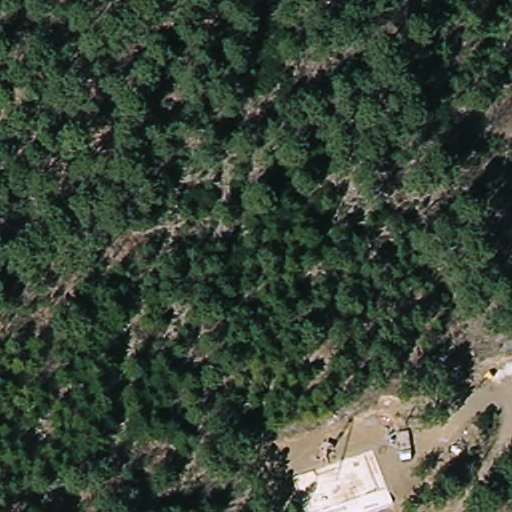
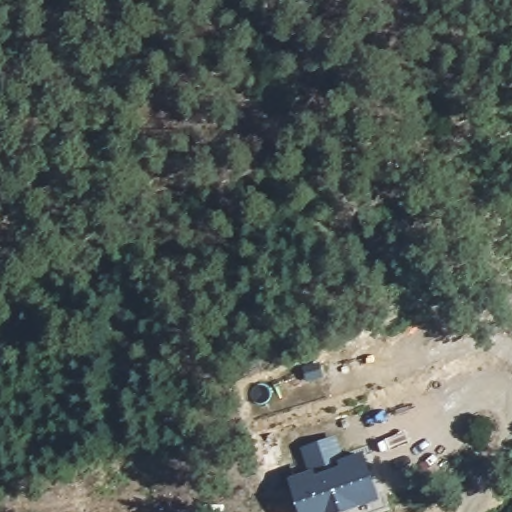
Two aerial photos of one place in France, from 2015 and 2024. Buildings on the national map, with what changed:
new [(336,436),(345,459),(364,452),(383,502),(355,512),(301,512),(289,479),(309,471),(300,449),(336,436)]

